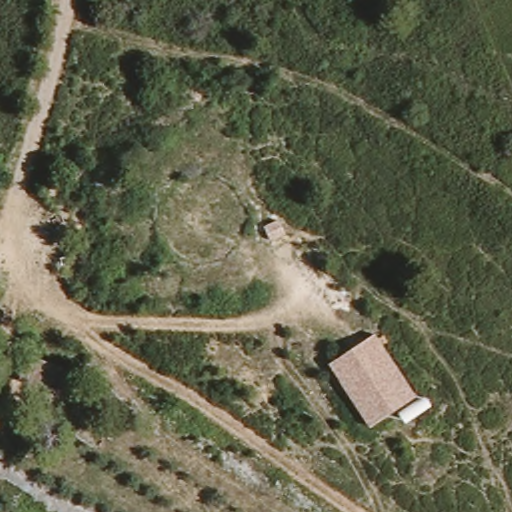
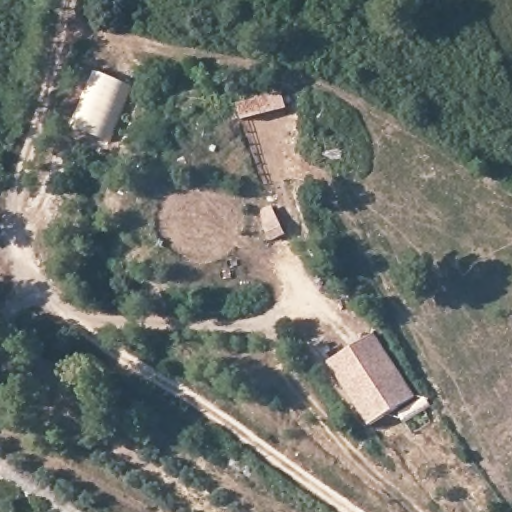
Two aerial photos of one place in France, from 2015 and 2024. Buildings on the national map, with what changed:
new [(72,126),(93,70),(128,84),(105,140),(72,126)]
unchanged [(335,367),(378,338),(420,401),(376,430),(335,367)]
unchanged [(72,402),(23,384),(35,360),(83,378),(72,402)]

